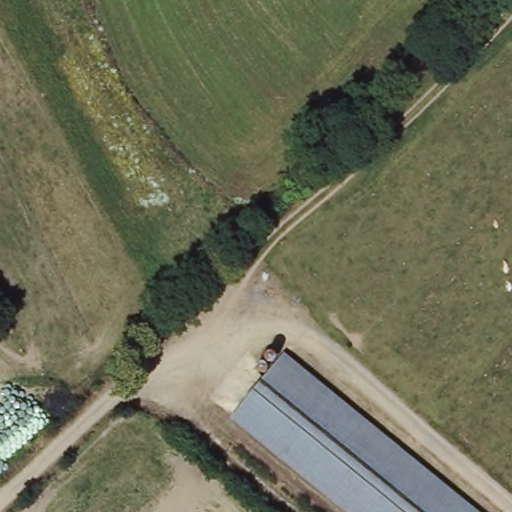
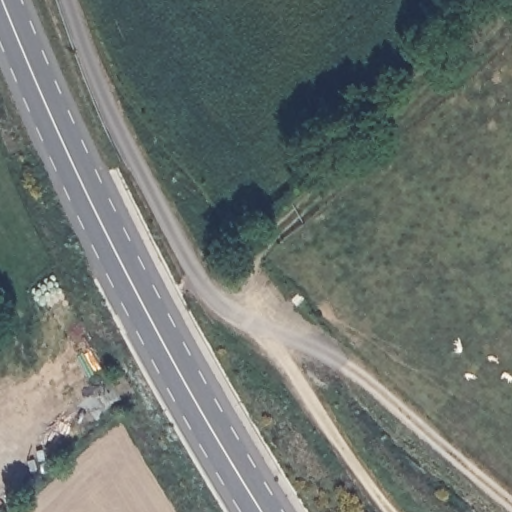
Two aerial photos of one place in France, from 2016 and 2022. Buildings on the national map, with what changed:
demolished [(282,356),(478,512),(349,512),(231,419),(282,356)]

